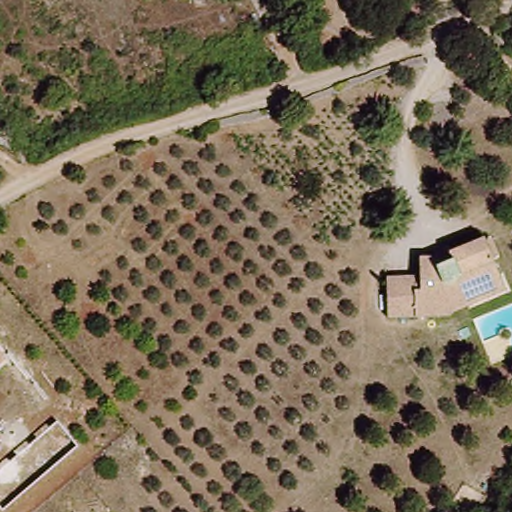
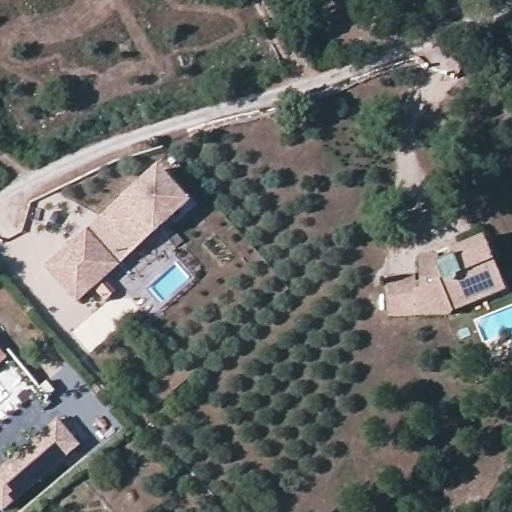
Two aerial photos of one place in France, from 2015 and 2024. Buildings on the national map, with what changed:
new [(154,170),(184,202),(92,287),(76,302),(46,270),(62,255),(154,170)]
unchanged [(475,305),(455,314),(454,318),(385,319),(385,282),(418,282),(417,294),(421,294),(421,262),(441,262),(452,257),(485,241),(503,283),(507,291),(475,305)]
unchanged [(8,360),(0,367),(0,350),(8,360)]
unchanged [(80,445),(3,511),(0,507),(0,470),(57,420),(80,445)]

